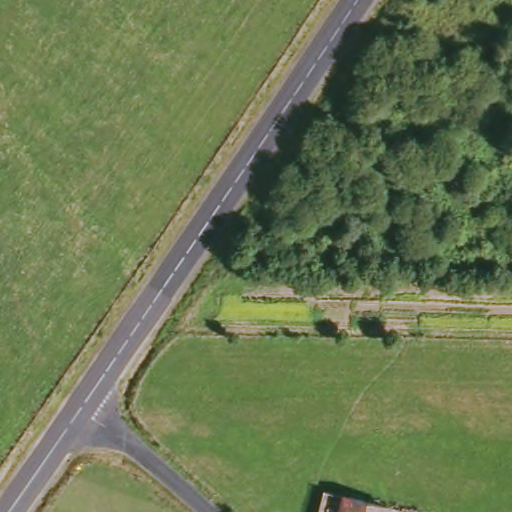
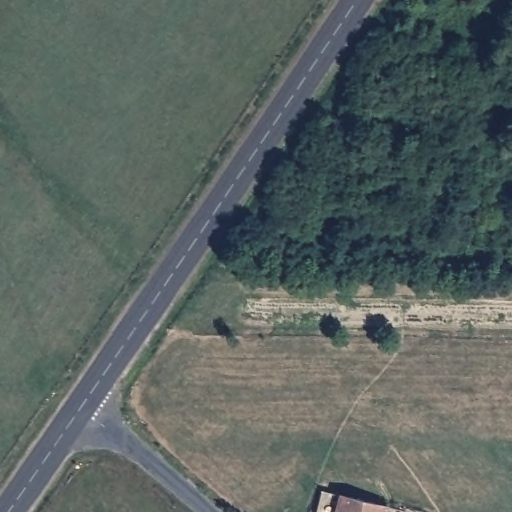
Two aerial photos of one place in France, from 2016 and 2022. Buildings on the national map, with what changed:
unchanged [(395,510),(394,512),(324,512),(328,495),(395,510)]

